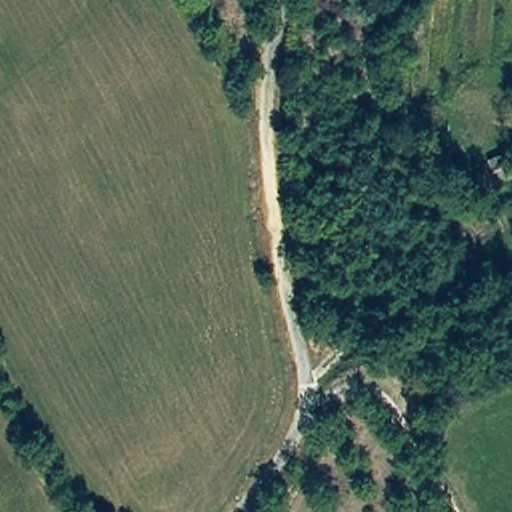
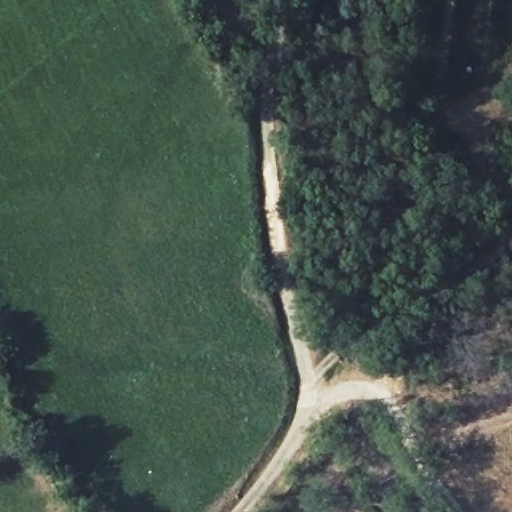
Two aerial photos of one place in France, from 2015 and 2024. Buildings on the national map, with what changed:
unchanged [(507,152),(512,168),(512,175),(494,182),(487,159),(507,152)]

